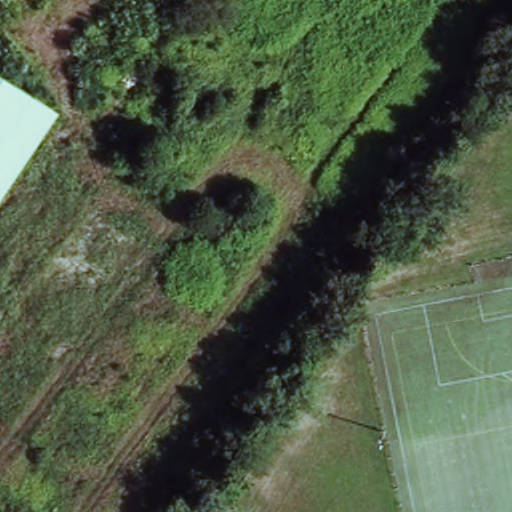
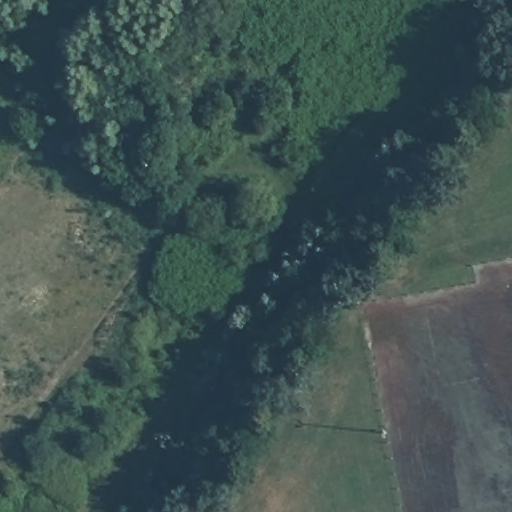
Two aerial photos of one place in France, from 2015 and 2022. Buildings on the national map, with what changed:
demolished [(0,185),(0,73),(53,108),(0,185)]

